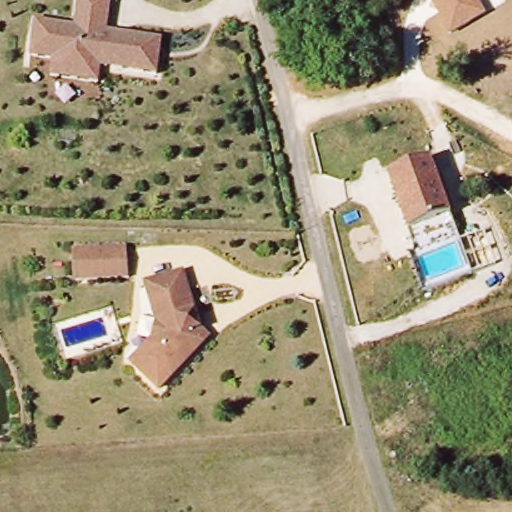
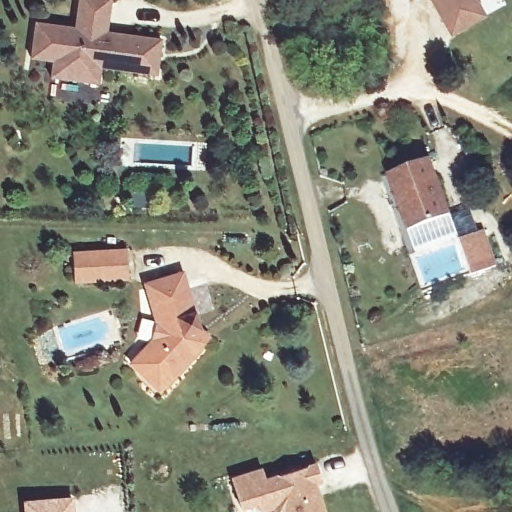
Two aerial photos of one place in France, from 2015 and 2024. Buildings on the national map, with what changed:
unchanged [(77,0),(111,0),(108,29),(162,37),(158,74),(100,65),(98,84),(48,75),(50,59),(30,56),(34,19),(75,23),(77,0)]
unchanged [(450,35),(431,0),(479,0),(486,15),(450,35)]
unchanged [(450,214),(406,230),(387,173),(431,156),(450,214)]
unchanged [(131,285),(77,281),(80,249),(133,253),(131,285)]
unchanged [(203,333),(200,334),(201,339),(206,346),(162,393),(135,365),(156,342),(159,327),(148,287),(185,275),(203,333)]
new [(264,467),(267,477),(316,463),(323,483),(317,486),(326,512),(281,512),(275,509),(261,512),(257,503),(240,509),(230,478),(264,467)]
new [(25,498),(72,496),(73,512),(26,512),(25,498)]

